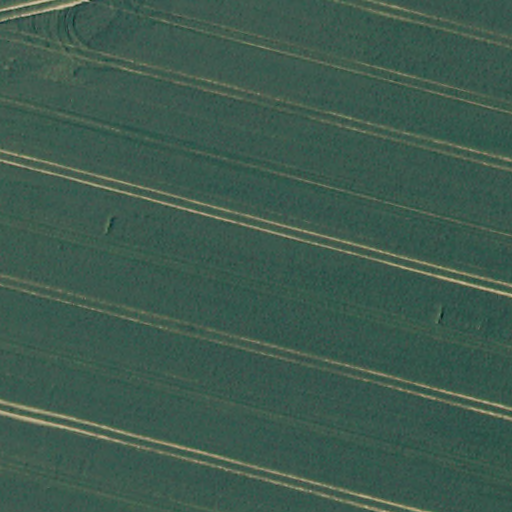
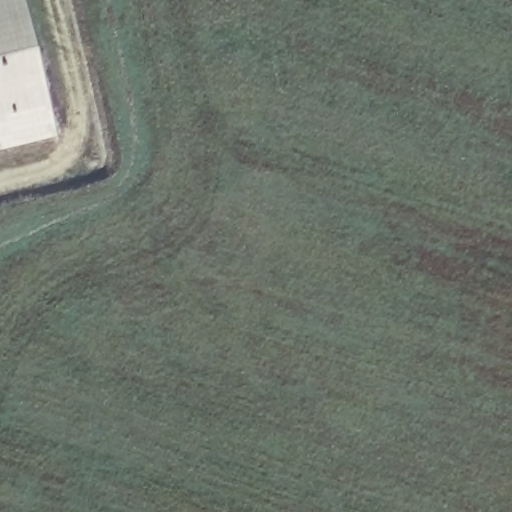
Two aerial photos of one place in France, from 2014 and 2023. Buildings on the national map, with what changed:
new [(0,151),(0,0),(26,0),(61,136),(0,151)]

